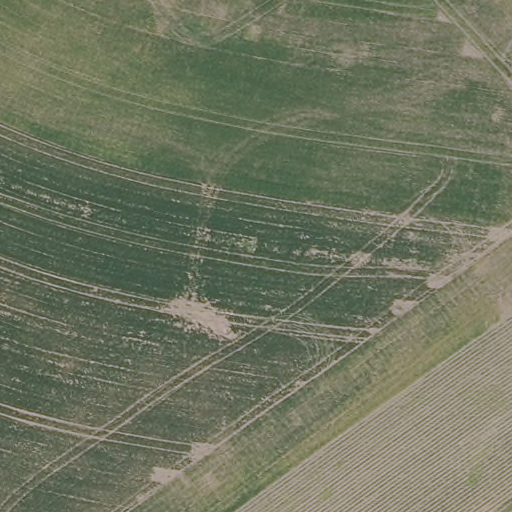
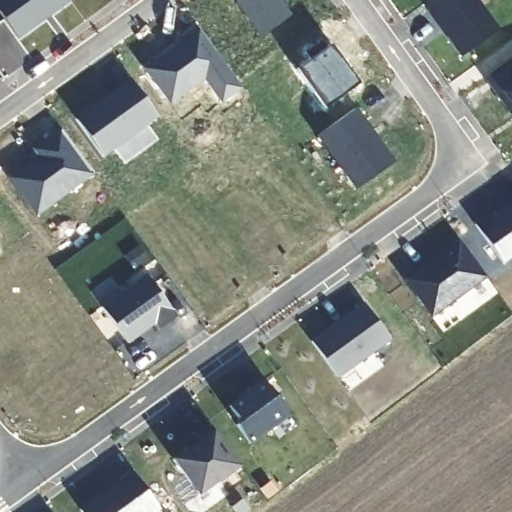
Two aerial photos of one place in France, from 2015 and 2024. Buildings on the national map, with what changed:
new [(0,14),(0,0),(69,0),(70,1),(18,40),(0,14)]
new [(290,15),(260,37),(233,2),(236,0),(280,0),(290,15)]
new [(497,30),(461,56),(423,5),(430,0),(476,0),(497,30)]
new [(240,88),(220,101),(203,79),(168,103),(142,65),(198,26),(240,88)]
new [(357,84),(325,108),(297,70),(330,46),(357,84)]
new [(486,81),(512,62),(512,117),(486,81)]
new [(158,117),(107,156),(76,117),(128,79),(158,117)]
new [(392,162),(354,190),(315,137),(356,109),(392,162)]
new [(33,149),(60,129),(91,174),(35,217),(7,178),(38,155),(33,149)]
new [(503,265),(474,224),(512,197),(512,259),(503,265)]
new [(430,318),(403,281),(460,240),(487,277),(430,318)]
new [(145,275),(167,305),(157,312),(162,320),(128,343),(102,306),(145,275)]
new [(338,378),(311,340),(362,303),(390,340),(338,378)]
new [(262,379),(289,416),(252,443),(225,406),(262,379)]
new [(238,467),(197,495),(172,458),(211,429),(238,467)]
new [(132,470),(160,510),(158,512),(81,512),(79,509),(132,470)]

